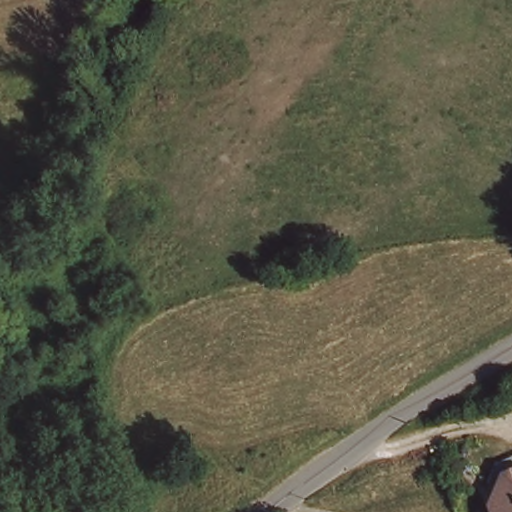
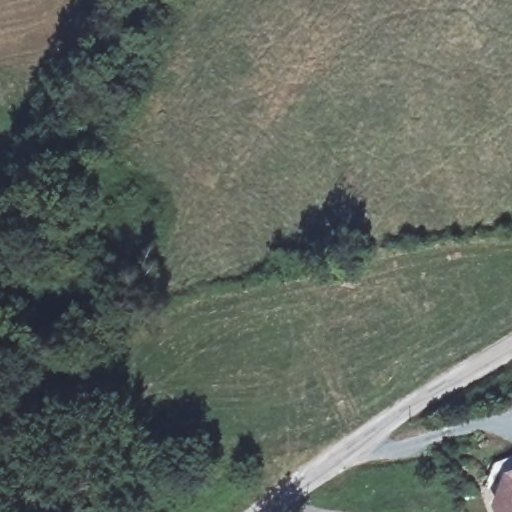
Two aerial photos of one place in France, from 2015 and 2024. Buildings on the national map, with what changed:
unchanged [(491,477),(512,470),(512,485),(511,486),(500,501),(484,491),(491,477)]
unchanged [(500,501),(511,486),(512,485),(512,512),(505,512),(500,501)]

